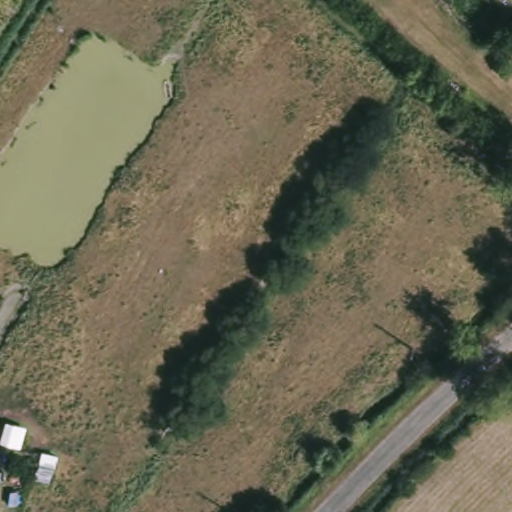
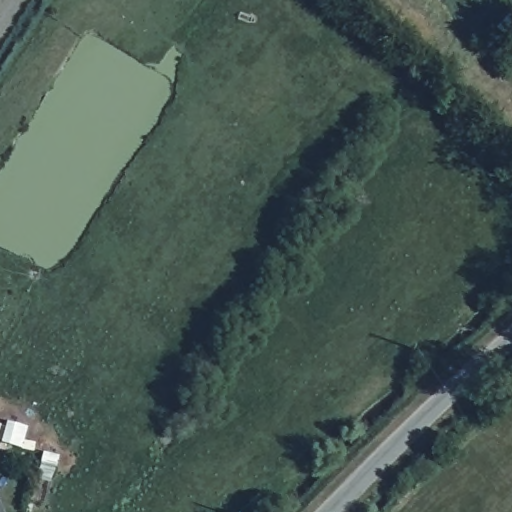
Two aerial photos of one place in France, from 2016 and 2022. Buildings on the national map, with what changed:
[]

